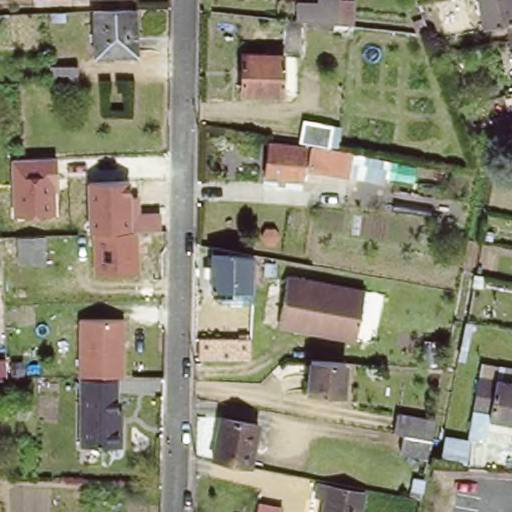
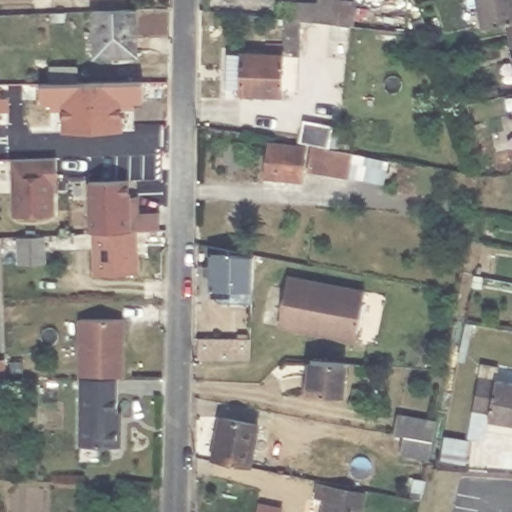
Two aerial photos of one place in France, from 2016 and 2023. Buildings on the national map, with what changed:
unchanged [(300,22),(302,4),(323,7),(324,0),(346,0),(343,27),(335,26),(300,22)]
unchanged [(507,42),(504,25),(501,26),(485,29),(479,0),(512,0),(512,65),(507,42)]
unchanged [(137,57),(95,59),(93,13),(136,11),(137,57)]
unchanged [(335,33),(304,29),(300,58),(283,56),(284,94),(237,95),(237,80),(243,79),(242,55),(273,54),(273,48),(283,48),(287,20),(300,22),(335,26),(335,33)]
unchanged [(348,61),(332,58),(335,39),(352,42),(348,61)]
demolished [(48,68),(75,67),(76,85),(49,85),(48,68)]
new [(62,102),(42,102),(40,84),(143,82),(144,101),(134,101),(132,108),(121,108),(122,132),(63,132),(62,102)]
unchanged [(322,172),(323,164),(308,161),(312,143),(299,141),(303,120),(330,124),(327,146),(350,150),(345,177),(322,172)]
unchanged [(305,146),(300,181),(263,175),(268,141),(305,146)]
unchanged [(11,159),(59,157),(60,184),(55,184),(55,212),(13,214),(11,159)]
unchanged [(91,180),(127,178),(129,215),(158,214),(160,230),(130,231),(132,271),(94,275),(94,274),(92,227),(91,180)]
unchanged [(15,237),(43,235),(45,265),(17,266),(15,237)]
unchanged [(256,288),(207,288),(207,247),(257,257),(256,288)]
unchanged [(302,283),(302,289),(318,292),(320,286),(363,295),(354,344),(277,329),(286,280),(302,283)]
unchanged [(81,379),(81,317),(120,318),(119,379),(81,379)]
unchanged [(249,362),(198,361),(198,342),(250,342),(249,362)]
unchanged [(343,366),(341,398),(307,396),(310,363),(343,366)]
unchanged [(512,382),(512,424),(490,419),(492,412),(475,409),(482,376),(512,382)]
unchanged [(0,394),(0,379),(10,379),(10,394),(0,394)]
unchanged [(123,425),(123,448),(81,448),(81,379),(119,379),(118,413),(123,413),(123,425)]
unchanged [(212,458),(221,414),(257,422),(248,465),(212,458)]
unchanged [(400,451),(403,436),(392,434),(395,414),(435,421),(431,441),(428,456),(400,451)]
unchanged [(333,489),(368,496),(365,512),(329,512),(330,503),(320,501),(323,488),(333,490),(333,489)]
unchanged [(409,503),(410,495),(422,497),(420,505),(409,503)]
new [(276,512),(255,512),(256,508),(276,512)]

